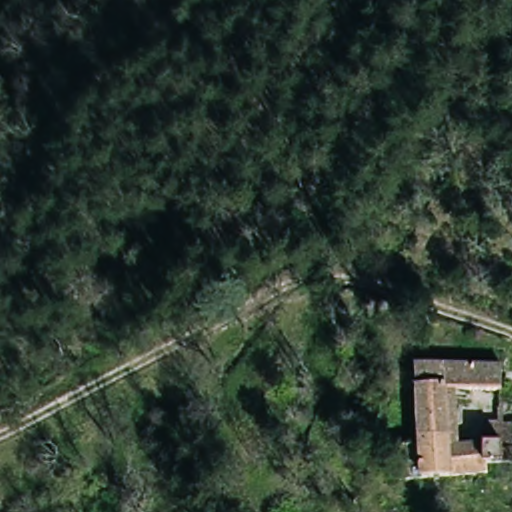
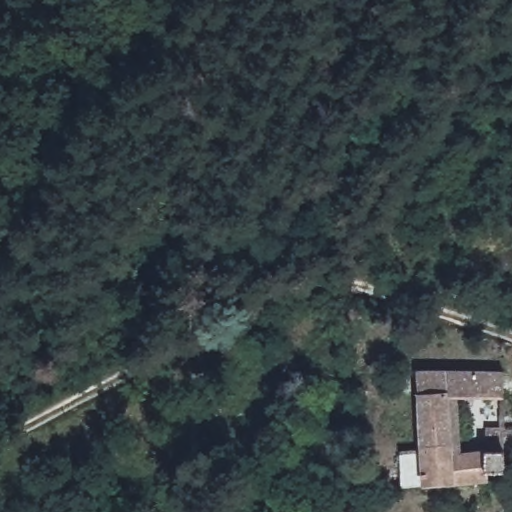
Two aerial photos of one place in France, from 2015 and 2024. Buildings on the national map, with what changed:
unchanged [(424,486),(418,363),(506,365),(506,400),(462,400),(464,446),(508,444),(507,467),(491,468),(490,485),(424,486)]

